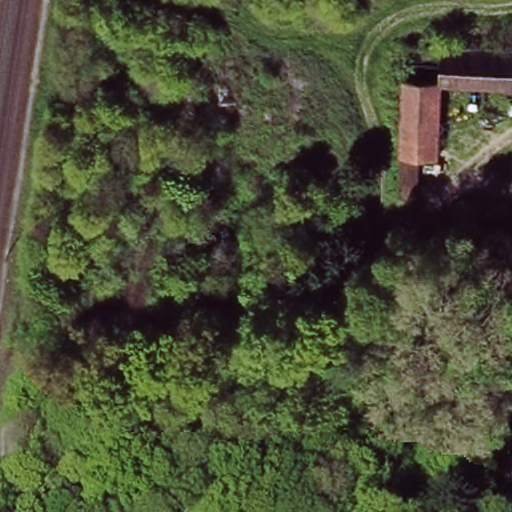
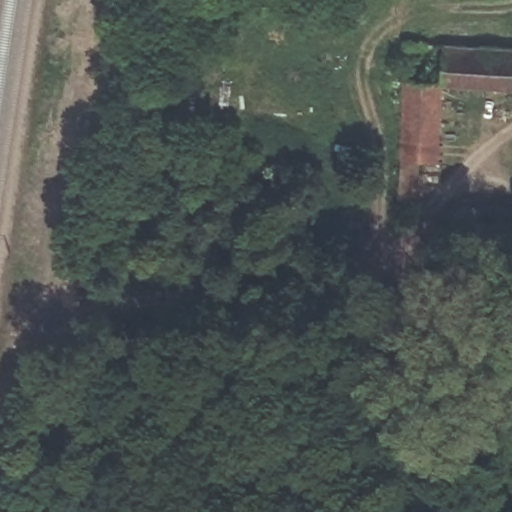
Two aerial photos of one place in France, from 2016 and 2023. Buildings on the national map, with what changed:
unchanged [(436,171),(417,170),(412,234),(392,233),(404,55),(512,52),(512,92),(442,94),(436,171)]

